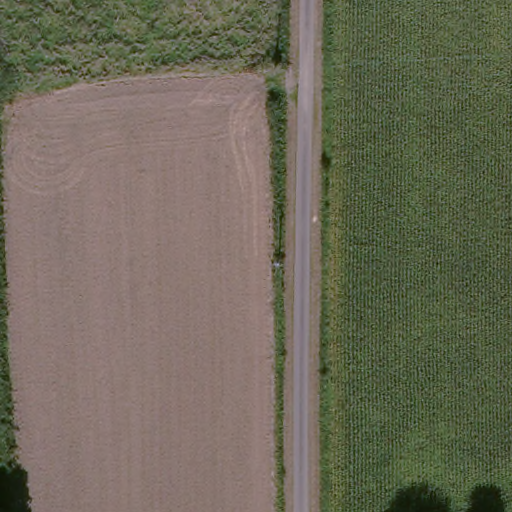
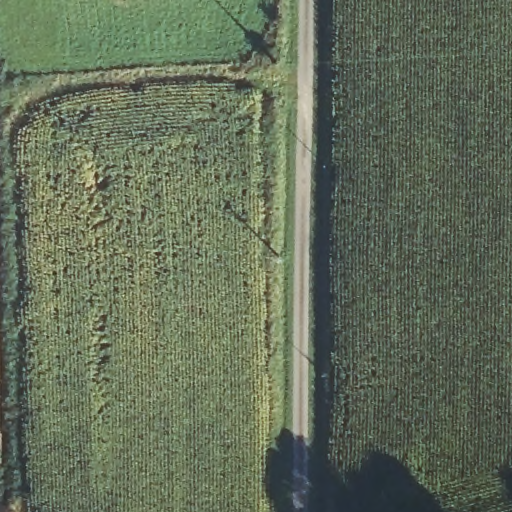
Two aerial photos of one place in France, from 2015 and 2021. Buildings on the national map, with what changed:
[]

